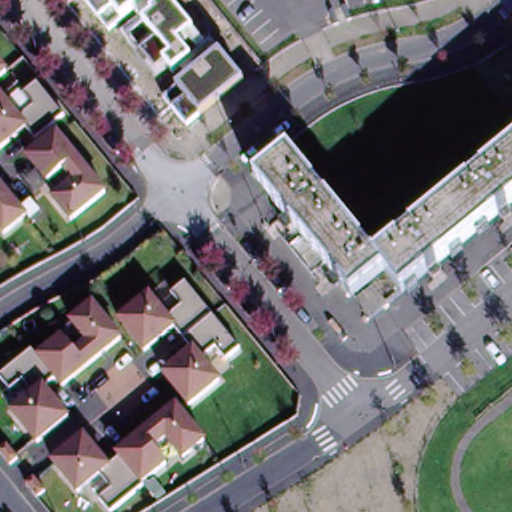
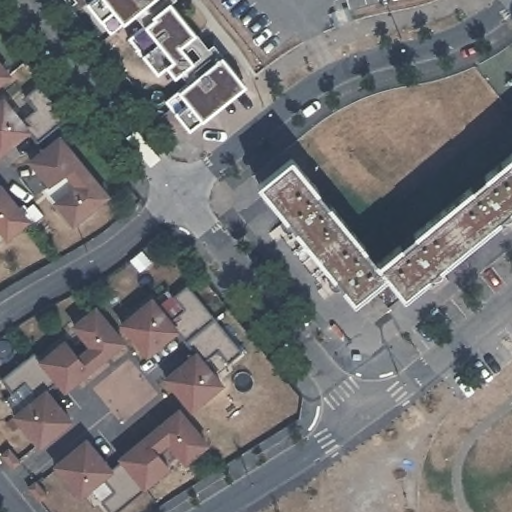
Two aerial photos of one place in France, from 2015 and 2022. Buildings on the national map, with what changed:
unchanged [(169,0),(195,32),(215,58),(220,54),(243,84),(200,119),(188,127),(165,102),(178,90),(187,82),(179,71),(172,77),(163,66),(155,73),(123,34),(142,20),(134,10),(123,17),(109,31),(86,3),(90,0),(169,0)]
unchanged [(12,71),(0,81),(0,55),(12,71)]
unchanged [(69,116),(39,140),(30,130),(0,153),(0,102),(1,101),(18,122),(36,106),(27,95),(43,81),(69,116)]
unchanged [(66,133),(87,159),(81,165),(88,175),(94,170),(111,192),(94,205),(70,173),(55,185),(33,160),(66,133)]
unchanged [(512,157),(512,210),(396,305),(370,272),(380,265),(512,157)]
unchanged [(310,180),(278,206),(260,185),(290,160),(310,180)]
unchanged [(278,206),(310,180),(380,265),(370,272),(348,290),(278,206)]
unchanged [(4,185),(29,219),(14,230),(3,213),(0,215),(0,189),(4,185)]
unchanged [(396,305),(374,323),(348,290),(370,272),(396,305)]
unchanged [(241,352),(229,362),(217,350),(204,360),(224,384),(191,413),(162,378),(195,351),(179,331),(146,358),(118,323),(151,296),(170,320),(184,308),(175,297),(188,286),(241,352)]
unchanged [(124,343),(63,393),(55,382),(47,389),(73,420),(38,449),(11,415),(34,397),(23,387),(14,395),(3,380),(34,355),(38,360),(64,340),(77,355),(86,346),(69,327),(95,305),(124,343)]
unchanged [(210,445),(184,465),(168,445),(157,453),(169,469),(144,490),(115,512),(108,512),(99,502),(92,507),(84,496),(79,500),(51,465),(86,437),(111,469),(119,462),(116,458),(178,406),(210,445)]

